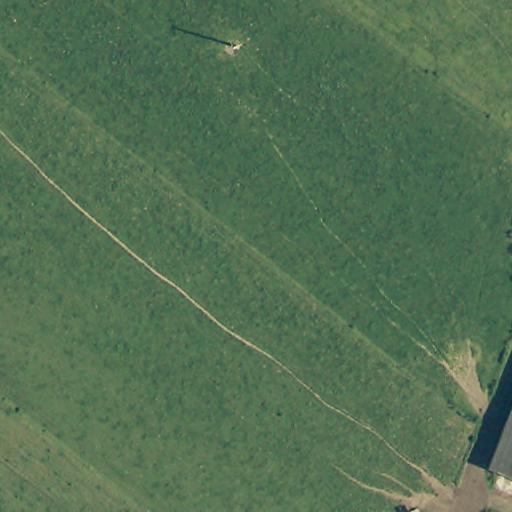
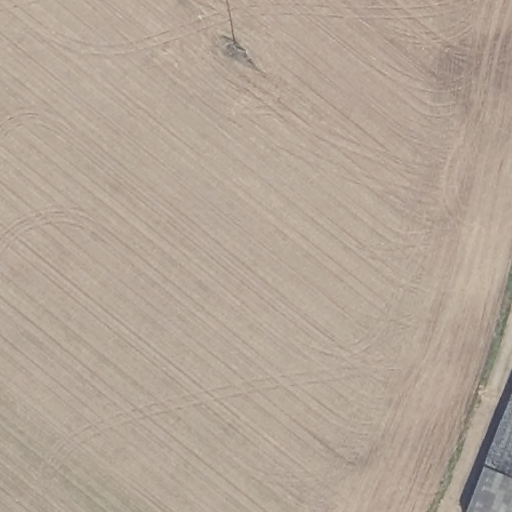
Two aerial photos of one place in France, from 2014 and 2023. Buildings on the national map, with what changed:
unchanged [(512,475),(489,466),(512,408),(512,475)]
new [(489,466),(512,475),(512,512),(472,512),(489,466)]

